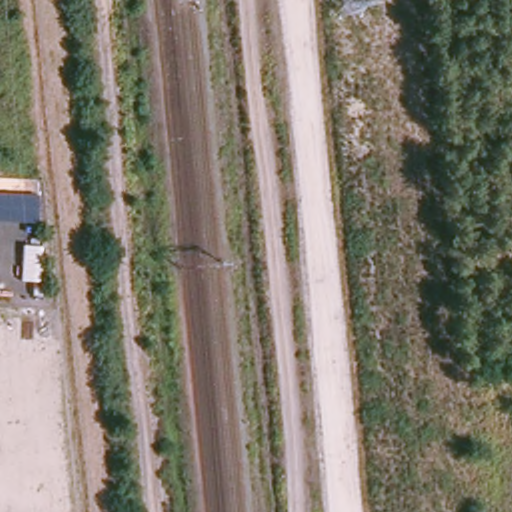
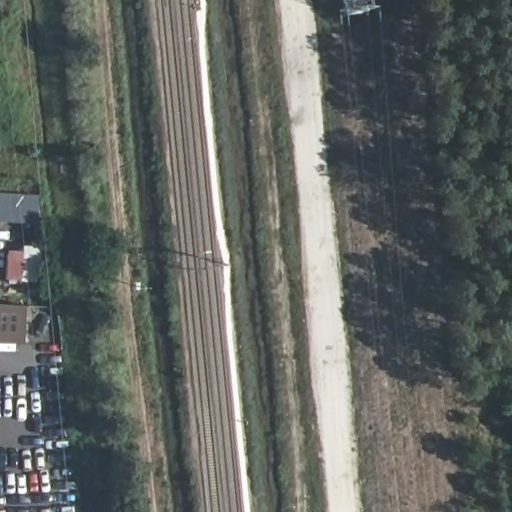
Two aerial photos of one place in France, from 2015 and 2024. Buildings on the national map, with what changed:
unchanged [(37,195),(36,223),(0,221),(0,193),(37,195)]
new [(21,307),(19,343),(0,342),(0,305),(21,307)]

